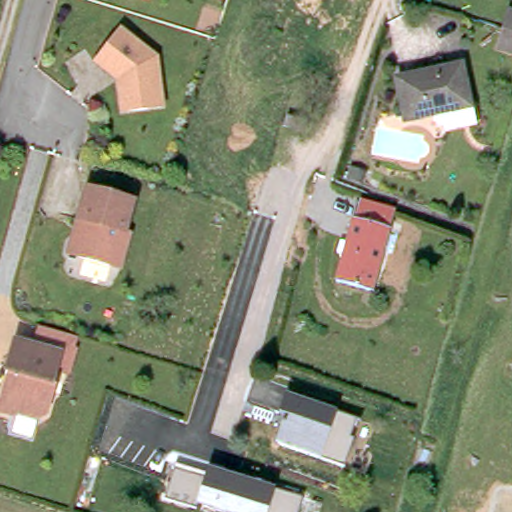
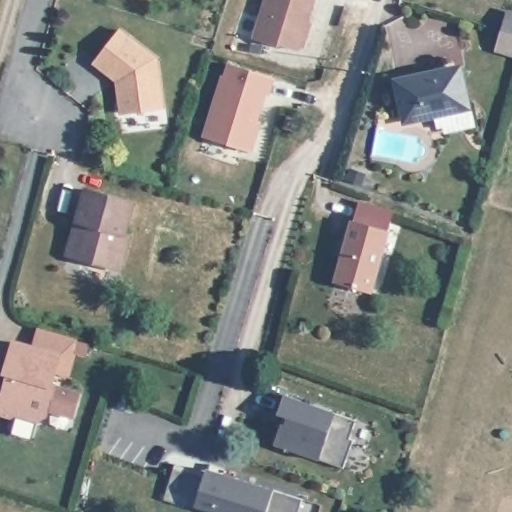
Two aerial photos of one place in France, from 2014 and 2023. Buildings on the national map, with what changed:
new [(311,22),(305,46),(299,49),(253,36),(263,0),(315,0),(308,21),(311,22)]
unchanged [(500,46),(505,29),(510,11),(512,12),(512,50),(500,46)]
unchanged [(155,51),(161,103),(120,109),(115,75),(94,57),(109,37),(119,25),(155,51)]
new [(267,94),(260,120),(261,120),(252,151),(202,136),(220,75),(225,75),(228,62),(276,75),(271,96),(267,94)]
unchanged [(394,82),(457,66),(467,105),(405,122),(394,82)]
unchanged [(128,201),(120,230),(125,232),(114,267),(65,252),(69,239),(75,234),(80,219),(75,217),(83,187),(128,201)]
unchanged [(343,247),(357,205),(393,217),(368,296),(333,285),(340,260),(335,258),(338,245),(343,247)]
unchanged [(15,337),(61,350),(52,380),(55,381),(46,411),(40,415),(16,408),(10,412),(0,409),(0,402),(8,375),(12,376),(16,362),(9,361),(15,337)]
unchanged [(286,391),(357,417),(348,435),(353,437),(342,463),(271,441),(286,391)]
unchanged [(425,447),(417,473),(402,468),(410,443),(425,447)]
unchanged [(197,507),(165,497),(173,465),(206,472),(197,507)]
unchanged [(302,499),(298,512),(229,512),(230,511),(210,506),(219,474),(302,499)]

